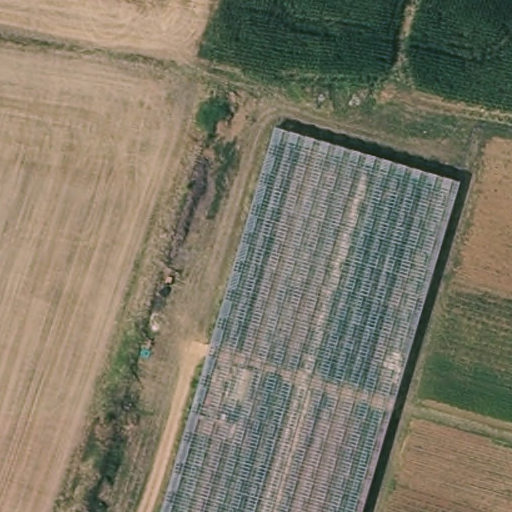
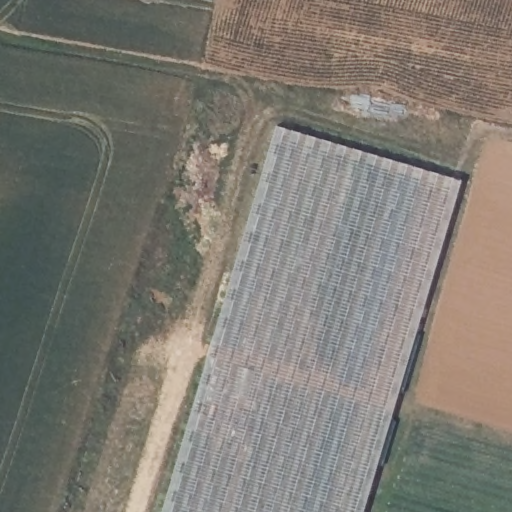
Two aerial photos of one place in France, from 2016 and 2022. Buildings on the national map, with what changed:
unchanged [(207,359),(277,129),(457,184),(358,512),(163,512),(207,359)]

